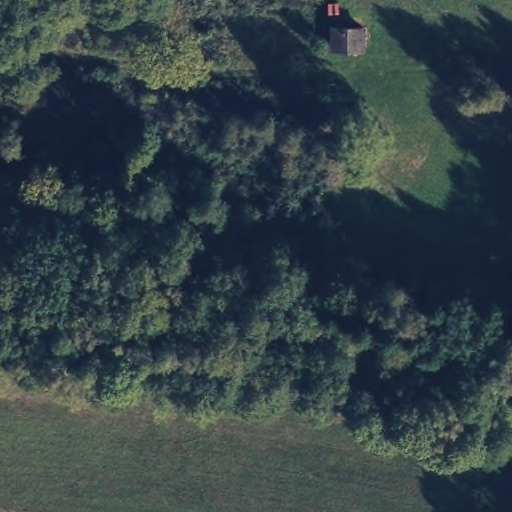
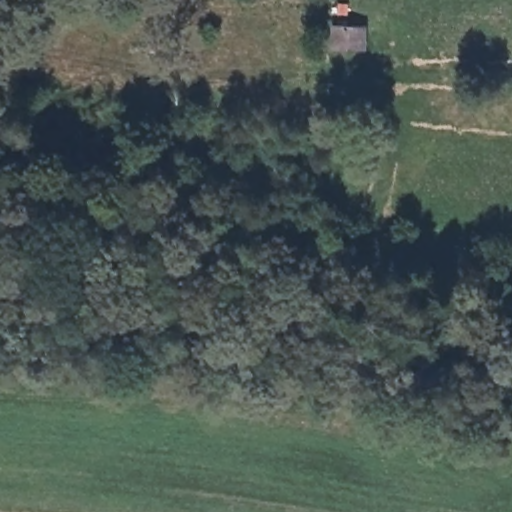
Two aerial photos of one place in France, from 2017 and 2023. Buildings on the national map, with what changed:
unchanged [(363,17),(364,44),(328,45),(328,17),(363,17)]

